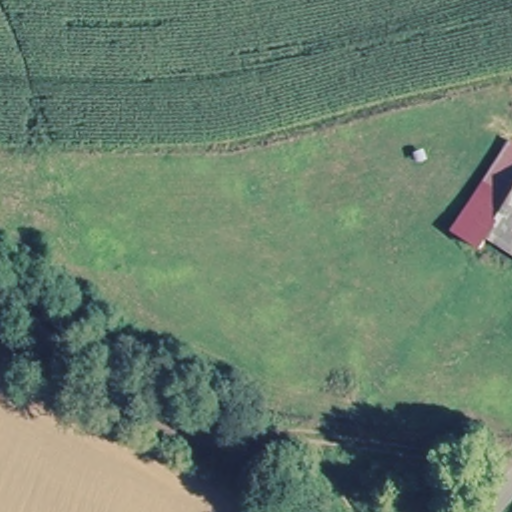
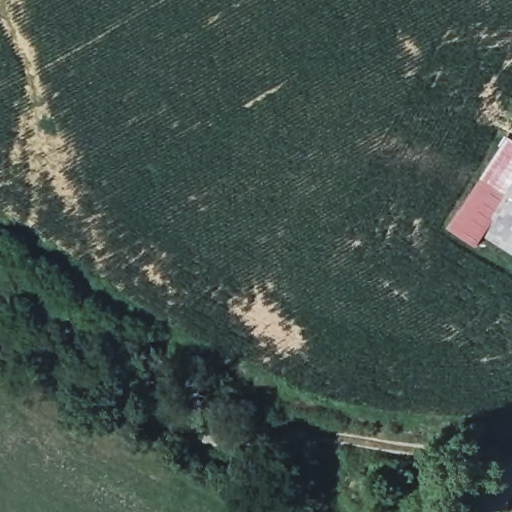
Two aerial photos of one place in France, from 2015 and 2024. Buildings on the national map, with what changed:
unchanged [(482,249),(453,231),(510,140),(512,141),(512,250),(491,236),(482,249)]

